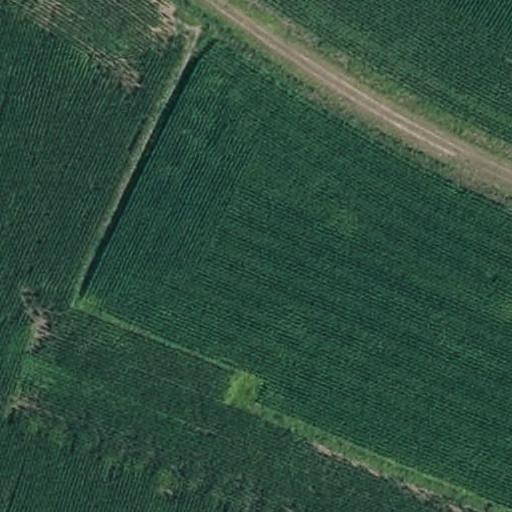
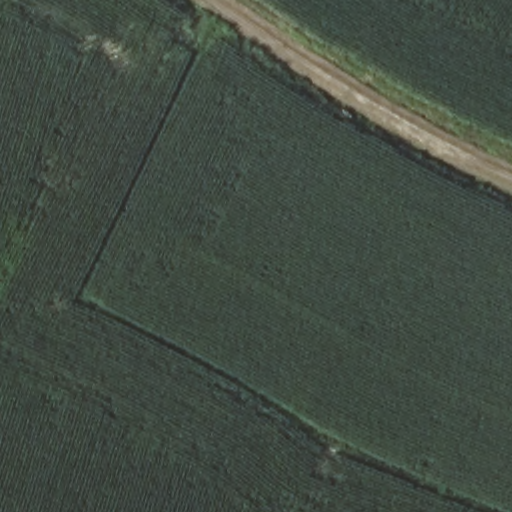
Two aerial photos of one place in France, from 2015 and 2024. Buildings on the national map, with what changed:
[]

